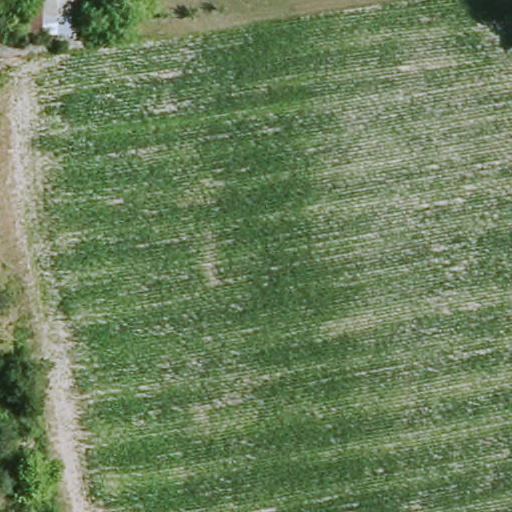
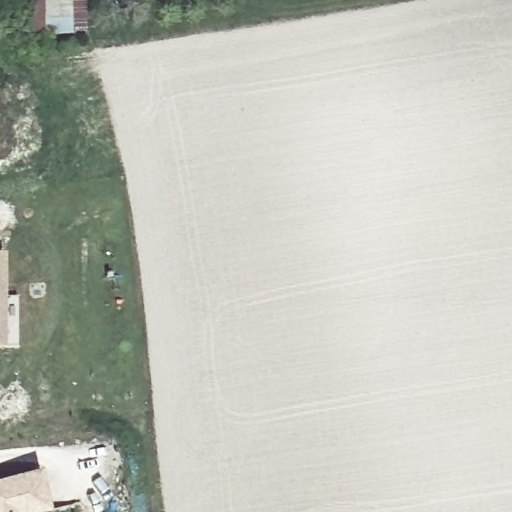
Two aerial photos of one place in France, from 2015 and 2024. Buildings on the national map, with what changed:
unchanged [(23,0),(45,0),(45,1),(68,0),(69,36),(21,35),(23,0)]
new [(0,295),(15,295),(18,345),(2,346),(0,346),(0,281),(0,295)]
new [(32,471),(43,507),(28,512),(0,512),(0,480),(32,471)]

